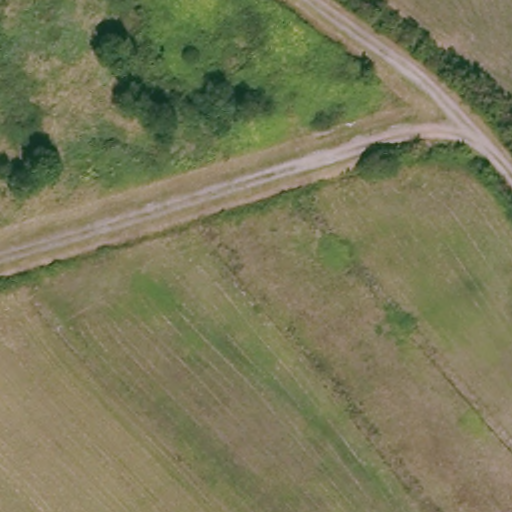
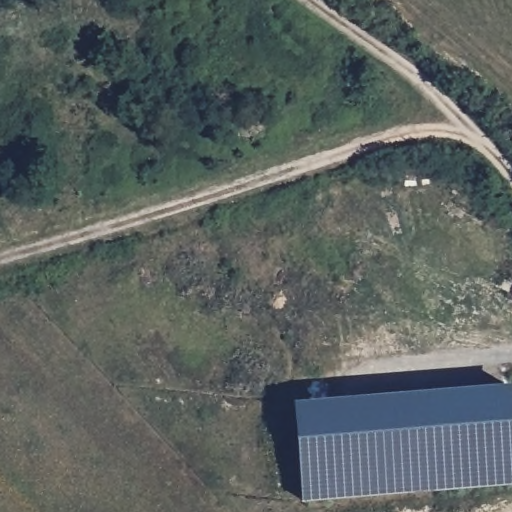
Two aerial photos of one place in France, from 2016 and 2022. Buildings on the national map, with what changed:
new [(294,402),(512,383),(512,485),(303,501),(294,402)]

